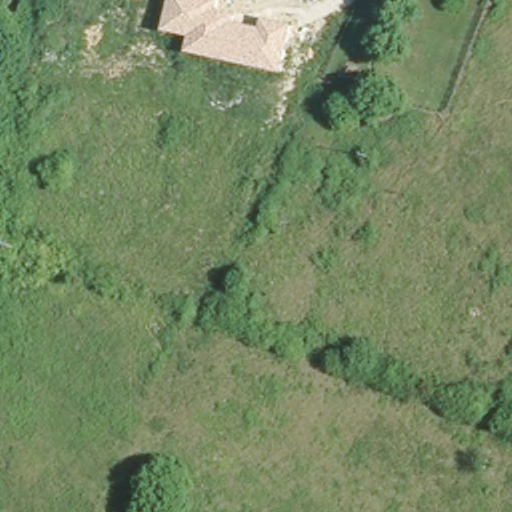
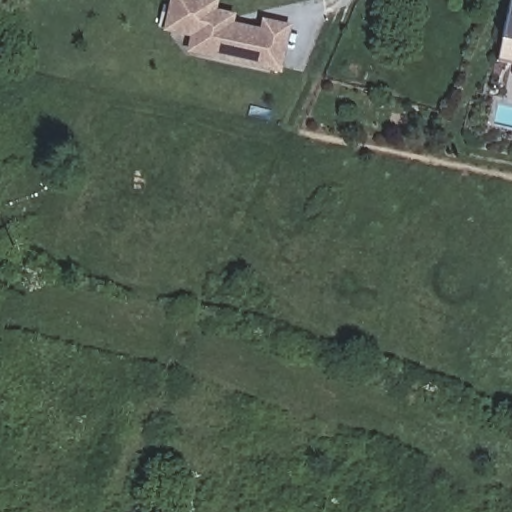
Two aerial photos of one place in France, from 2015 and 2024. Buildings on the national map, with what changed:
unchanged [(186,52),(189,36),(163,31),(169,0),(218,0),(217,11),(235,14),(234,23),(261,28),(263,19),(292,25),(281,72),(186,52)]
new [(512,62),(497,59),(502,38),(510,0),(512,1),(512,62)]

